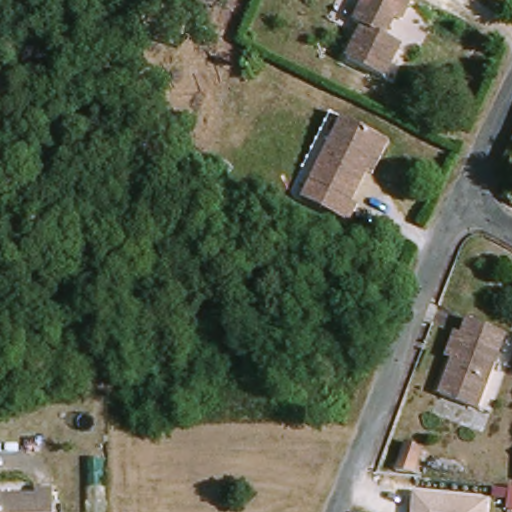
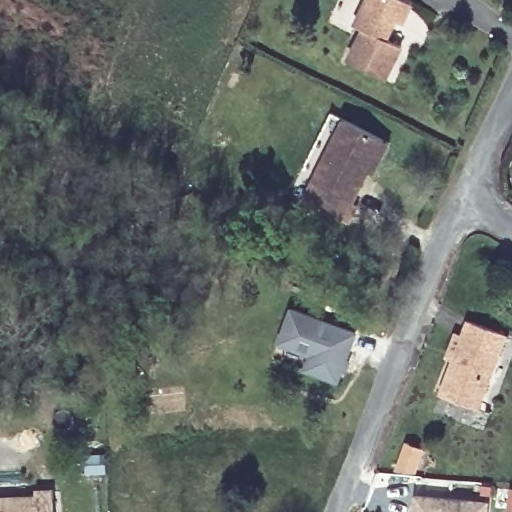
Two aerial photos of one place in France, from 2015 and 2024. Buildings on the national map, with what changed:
unchanged [(358,58),(374,27),(365,23),(377,0),(418,0),(422,2),(413,21),(405,18),(396,37),(412,45),(395,78),(358,58)]
unchanged [(315,197),(355,117),(395,138),(401,141),(385,172),(379,169),(355,218),(315,197)]
new [(290,306),(356,332),(346,360),(350,362),(347,373),(341,371),(337,383),(302,370),(308,355),(277,345),(290,306)]
unchanged [(512,346),(488,408),(451,393),(479,319),(512,332),(512,346)]
unchanged [(396,475),(407,448),(423,455),(414,478),(396,475)]
unchanged [(35,497),(35,490),(52,490),(53,512),(0,512),(0,498),(35,497)]
unchanged [(489,501),(488,512),(413,512),(414,493),(489,501)]

